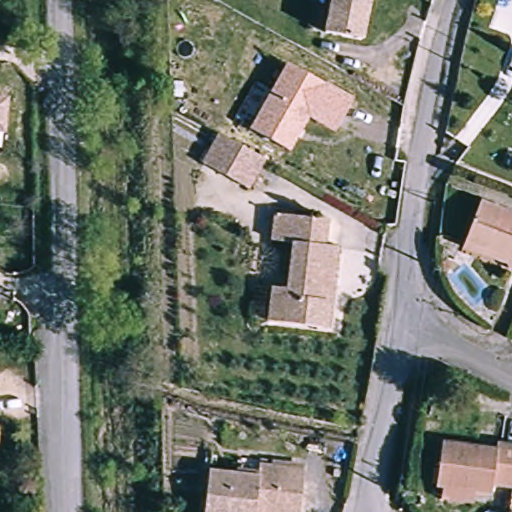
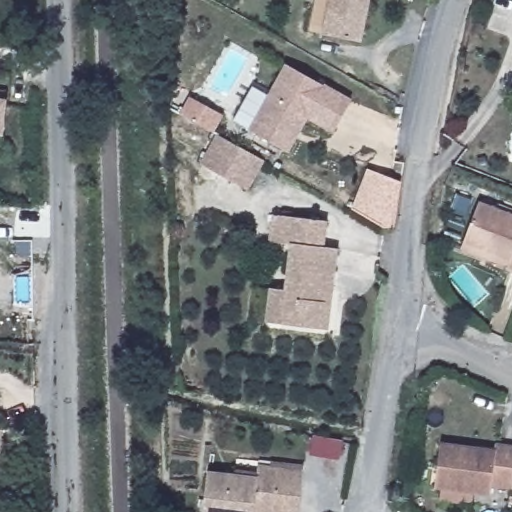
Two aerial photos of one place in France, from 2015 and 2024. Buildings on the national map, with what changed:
unchanged [(325,35),(331,0),(369,0),(362,41),(325,35)]
unchanged [(352,100),(334,133),(308,119),(289,153),(249,129),(285,64),(352,100)]
unchanged [(7,100),(3,135),(0,135),(0,90),(7,90),(7,100)]
new [(188,96),(219,113),(210,131),(196,123),(179,115),(188,96)]
unchanged [(262,164),(247,193),(205,167),(220,138),(262,164)]
new [(368,167),(398,185),(390,228),(384,228),(346,207),(368,167)]
unchanged [(478,207),(512,218),(512,258),(466,243),(478,207)]
unchanged [(269,292),(285,294),(289,245),(270,244),(274,217),(322,223),(320,247),(336,248),(332,287),(328,332),(321,332),(281,327),(266,325),(269,292)]
unchanged [(510,269),(512,261),(512,270),(510,269)]
unchanged [(437,491),(443,443),(473,447),(498,450),(499,443),(512,444),(512,491),(494,489),(492,497),(437,491)]
unchanged [(211,471),(253,478),(255,462),(277,465),(269,512),(252,512),(249,512),(205,512),(211,471)]
unchanged [(300,469),(295,512),(269,512),(277,465),(300,469)]

